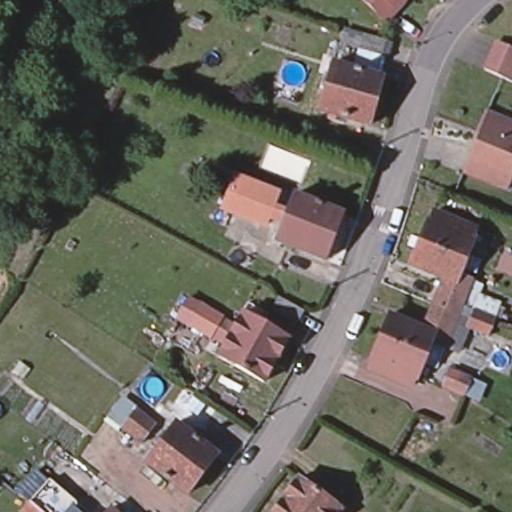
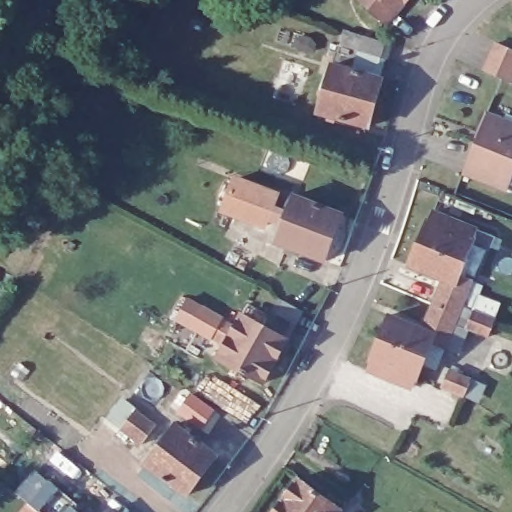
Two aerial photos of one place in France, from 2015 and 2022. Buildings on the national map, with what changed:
unchanged [(364,0),(401,0),(383,19),(379,15),(364,0)]
unchanged [(399,36),(395,51),(366,43),(371,27),(399,36)]
unchanged [(512,83),(487,72),(499,44),(512,49),(512,83)]
unchanged [(383,87),(371,127),(318,111),(330,71),(383,87)]
unchanged [(512,166),(504,187),(461,170),(485,109),(512,120),(512,166)]
unchanged [(281,193),(271,218),(247,208),(258,183),(281,193)]
unchanged [(343,217),(324,264),(276,244),(296,198),(343,217)]
unchanged [(216,202),(236,213),(228,229),(207,217),(216,202)]
unchanged [(443,276),(411,263),(429,215),(432,216),(434,210),(472,225),(469,233),(476,236),(461,273),(471,277),(483,281),(474,303),(462,299),(458,310),(469,315),(473,306),(496,315),(489,334),(466,325),(454,320),(444,344),(433,339),(419,377),(414,375),(410,384),(371,369),(374,358),(370,356),(389,311),(424,326),(434,299),(443,276)]
unchanged [(512,285),(491,277),(498,258),(512,263),(512,285)]
unchanged [(305,308),(299,321),(275,310),(281,296),(305,308)]
unchanged [(225,314),(212,338),(192,327),(205,304),(225,314)]
unchanged [(289,338),(266,381),(218,356),(242,313),(289,338)]
unchanged [(472,385),(464,404),(441,395),(449,376),(472,385)]
unchanged [(128,431),(144,410),(163,426),(146,445),(128,431)]
unchanged [(183,420),(223,451),(193,490),(153,460),(183,420)]
unchanged [(300,477),(344,507),(340,512),(275,512),(300,477)]
unchanged [(59,509),(63,512),(57,512),(59,509)]

